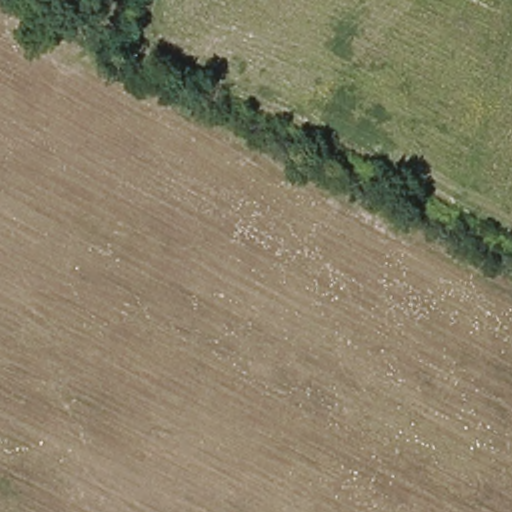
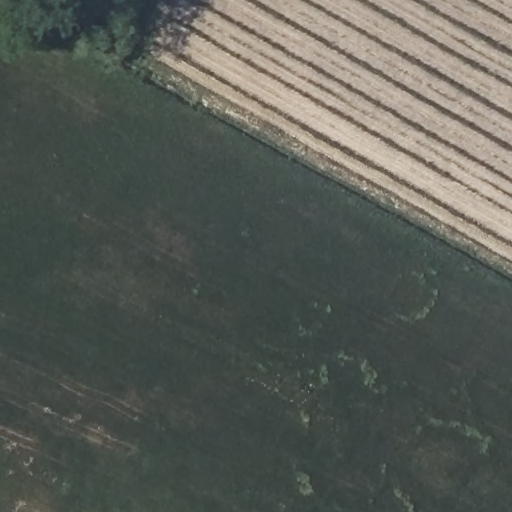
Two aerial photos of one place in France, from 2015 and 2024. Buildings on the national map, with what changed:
[]

